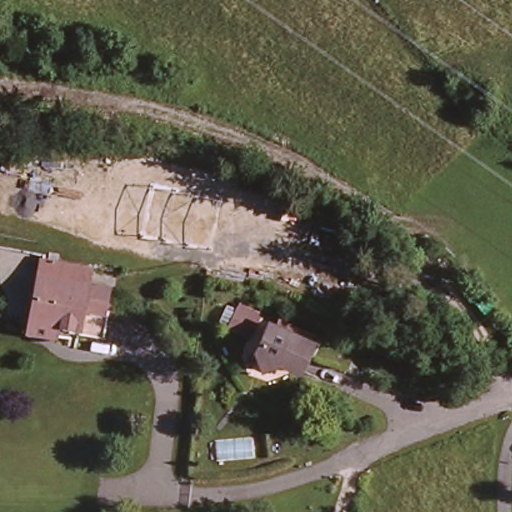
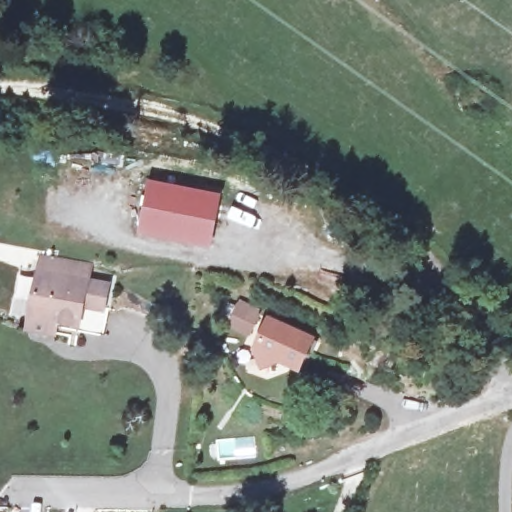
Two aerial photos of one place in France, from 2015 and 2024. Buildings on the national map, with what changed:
new [(150,181),(222,195),(210,249),(140,234),(150,181)]
unchanged [(85,304),(80,323),(35,314),(42,271),(108,285),(104,307),(85,304)]
unchanged [(110,310),(105,335),(80,330),(77,336),(33,328),(35,314),(80,323),(85,304),(104,307),(110,310)]
unchanged [(276,316),(310,335),(318,340),(301,365),(280,355),(265,360),(259,342),(271,324),(276,316)]

